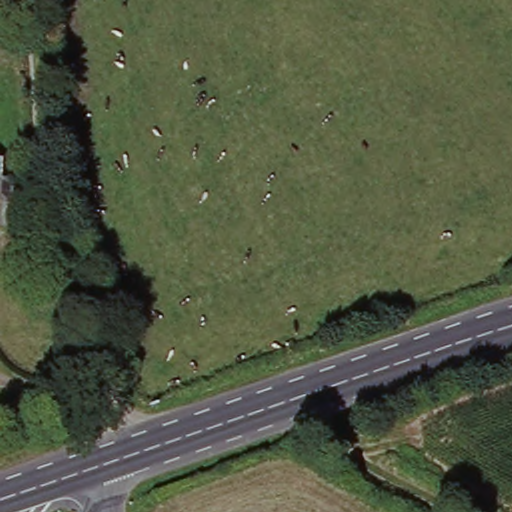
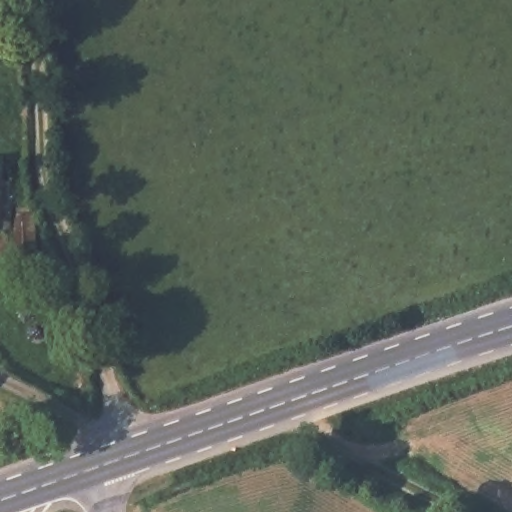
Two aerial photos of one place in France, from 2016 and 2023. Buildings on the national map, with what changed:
unchanged [(7,215),(7,234),(0,234),(0,185),(9,185),(7,215)]

